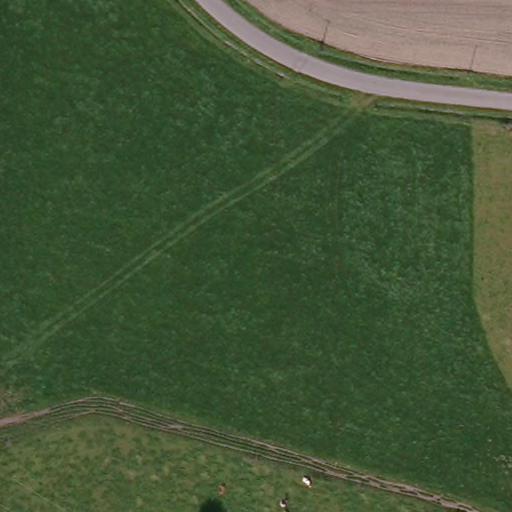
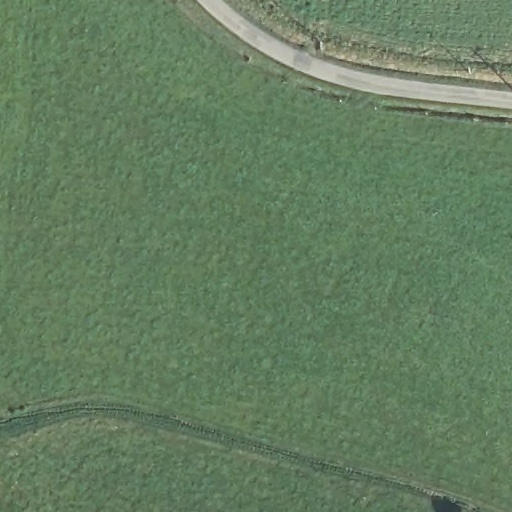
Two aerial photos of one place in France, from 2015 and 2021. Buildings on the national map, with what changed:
[]

